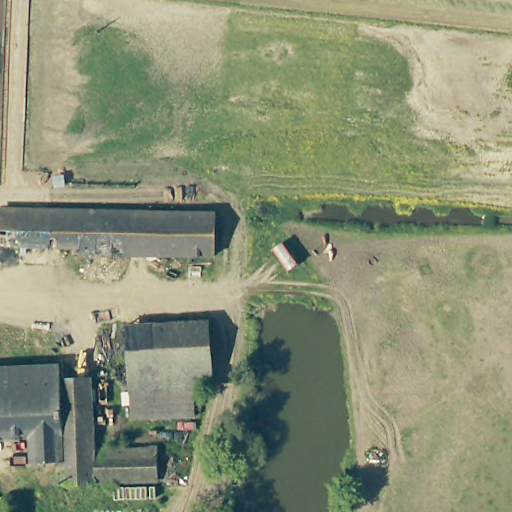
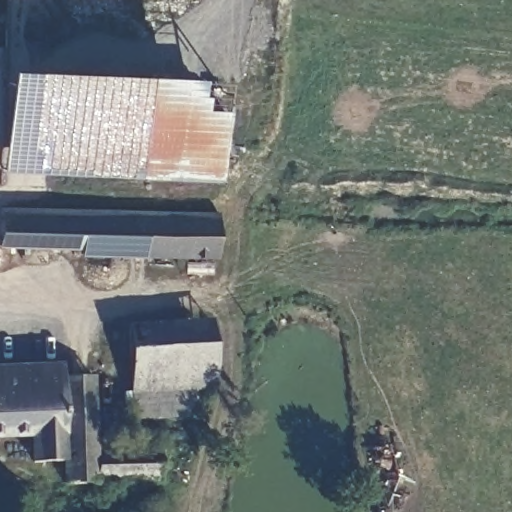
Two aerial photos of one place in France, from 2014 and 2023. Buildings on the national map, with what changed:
new [(218,179),(0,171),(0,142),(5,68),(223,78),(218,179)]
unchanged [(221,218),(220,258),(85,254),(84,246),(0,243),(0,206),(214,211),(221,218)]
unchanged [(134,397),(129,327),(205,324),(210,393),(190,394),(134,397)]
unchanged [(66,458),(34,459),(33,432),(0,432),(0,364),(64,363),(65,376),(65,432),(66,450),(66,458)]
unchanged [(87,376),(88,450),(66,450),(65,432),(65,376),(87,376)]
unchanged [(191,418),(135,422),(134,397),(190,394),(191,418)]
unchanged [(88,450),(162,449),(162,481),(66,482),(66,458),(66,450),(88,450)]

